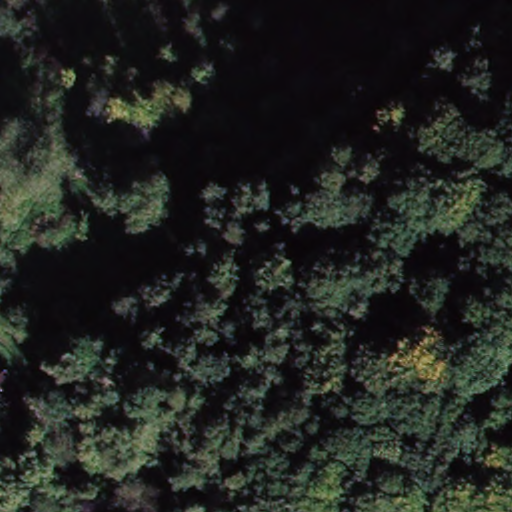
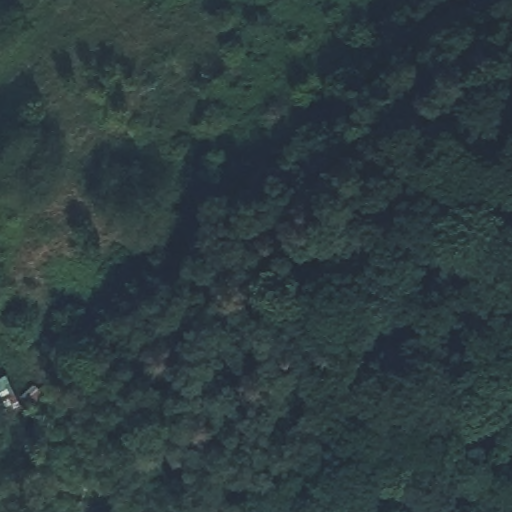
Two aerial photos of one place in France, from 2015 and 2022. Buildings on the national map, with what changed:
[]

